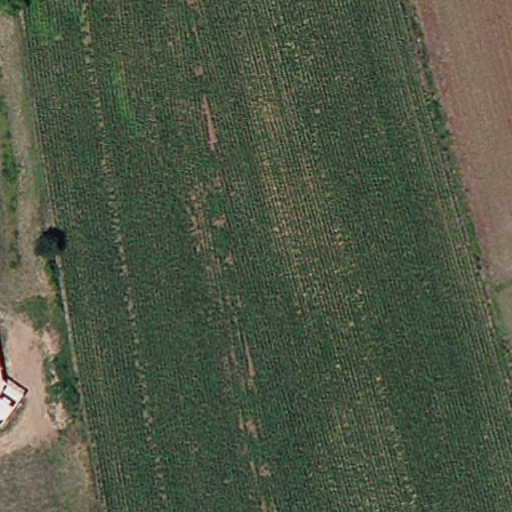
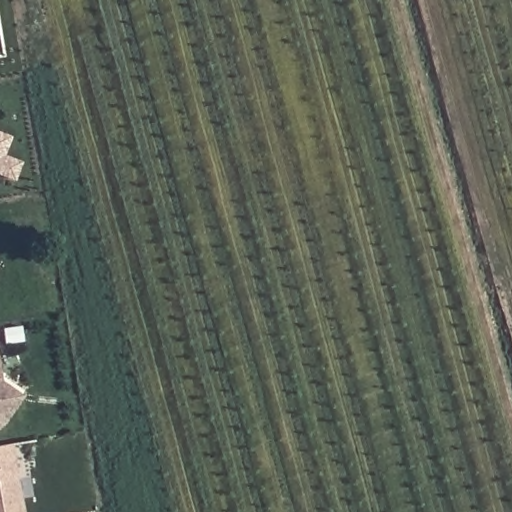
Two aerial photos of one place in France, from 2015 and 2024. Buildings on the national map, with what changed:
new [(11,136),(0,165),(0,132),(11,136)]
new [(15,179),(0,174),(0,165),(4,155),(22,161),(15,179)]
unchanged [(2,382),(21,395),(0,427),(0,372),(2,382)]
new [(13,444),(25,512),(0,512),(0,446),(13,444)]

